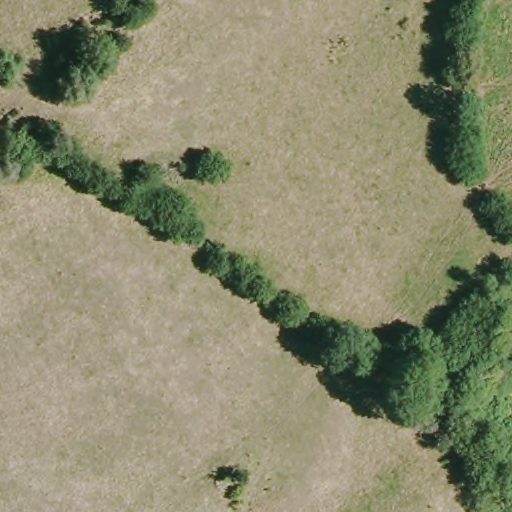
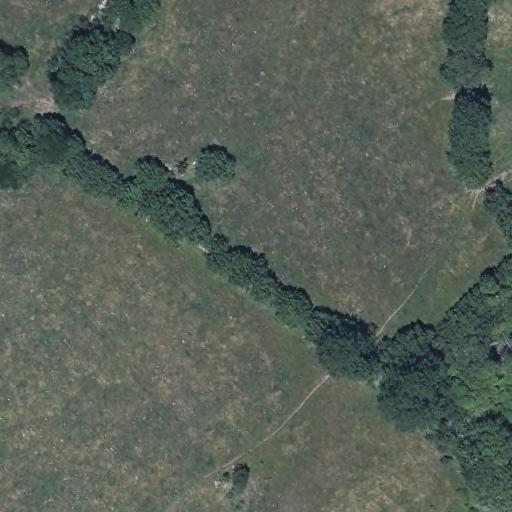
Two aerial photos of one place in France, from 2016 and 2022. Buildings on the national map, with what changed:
[]

